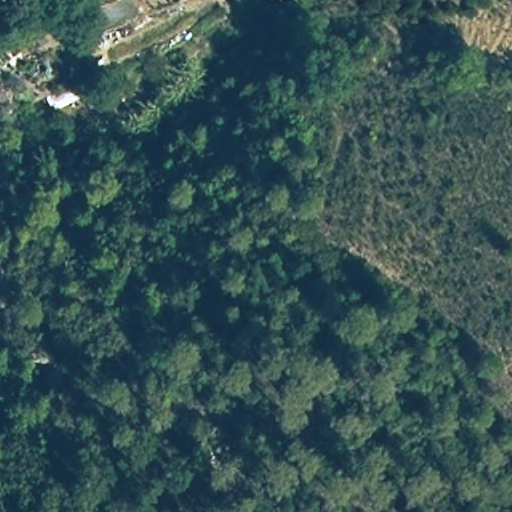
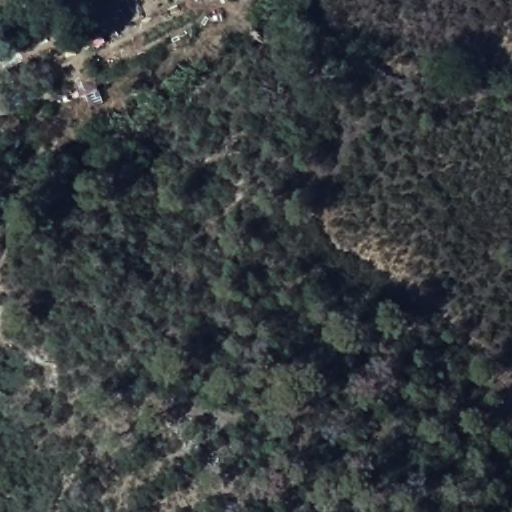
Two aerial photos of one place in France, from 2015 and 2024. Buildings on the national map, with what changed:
[]

